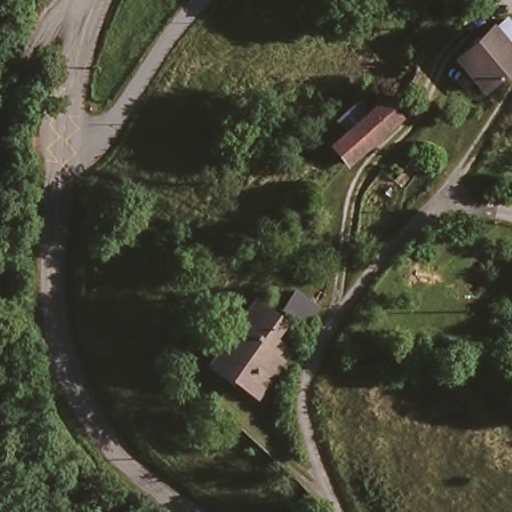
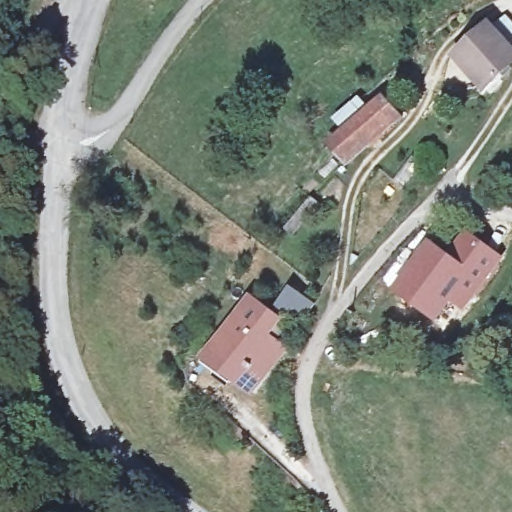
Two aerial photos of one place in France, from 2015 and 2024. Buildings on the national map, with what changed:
unchanged [(495,29),(512,50),(512,64),(484,88),(457,56),(495,29)]
unchanged [(345,131),(349,128),(339,117),(362,97),(368,104),(360,111),(365,115),(374,108),(387,97),(402,116),(389,126),(360,149),(345,162),(330,144),(345,131)]
new [(431,240),(450,253),(467,231),(503,257),(462,311),(451,302),(435,322),(395,291),(431,240)]
unchanged [(271,299),(267,303),(285,322),(270,336),(286,353),(247,388),(214,351),(208,343),(235,319),(265,292),(271,299)]
unchanged [(305,292),(324,311),(307,328),(288,309),(305,292)]

